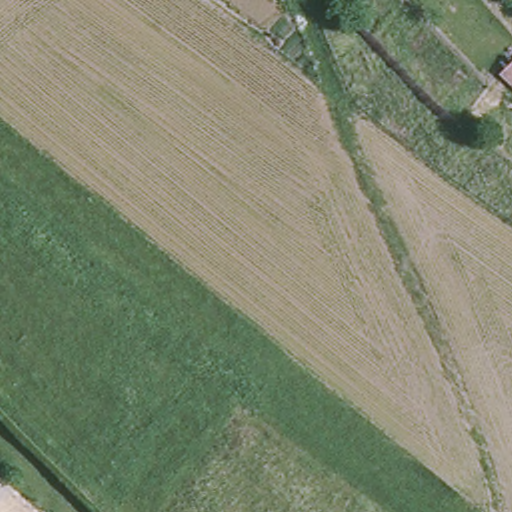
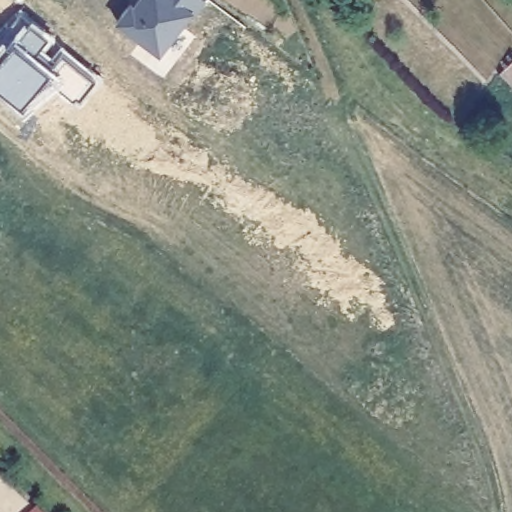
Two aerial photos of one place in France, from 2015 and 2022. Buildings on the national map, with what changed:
new [(163,57),(119,27),(137,0),(201,0),(203,2),(163,57)]
new [(49,39),(38,57),(50,67),(58,56),(95,85),(76,107),(51,87),(24,117),(0,100),(0,57),(27,22),(49,39)]
unchanged [(512,61),(512,86),(500,75),(512,61)]
new [(41,512),(31,512),(36,507),(41,512)]

